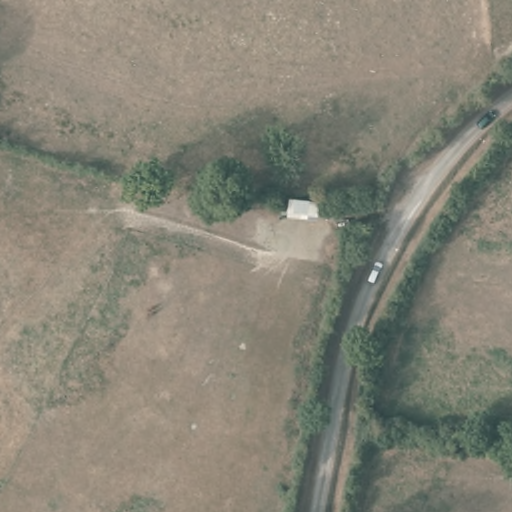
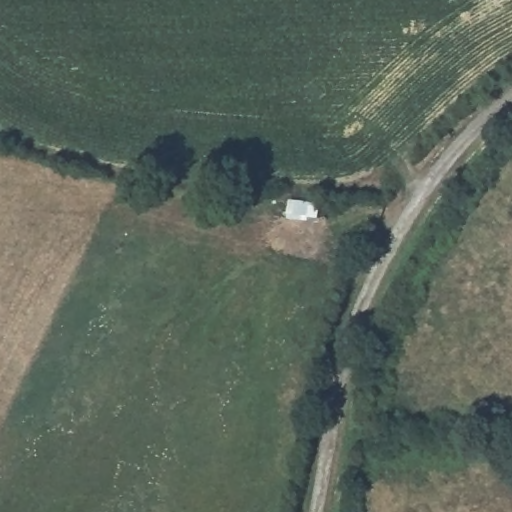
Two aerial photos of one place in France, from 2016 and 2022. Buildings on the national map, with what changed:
unchanged [(280,192),(319,195),(317,217),(296,215),(278,214),(280,192)]

